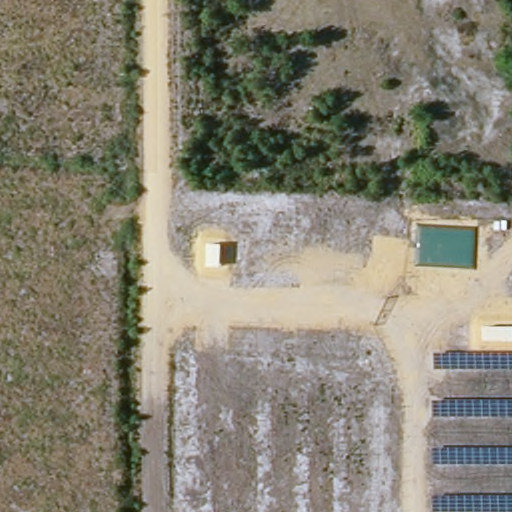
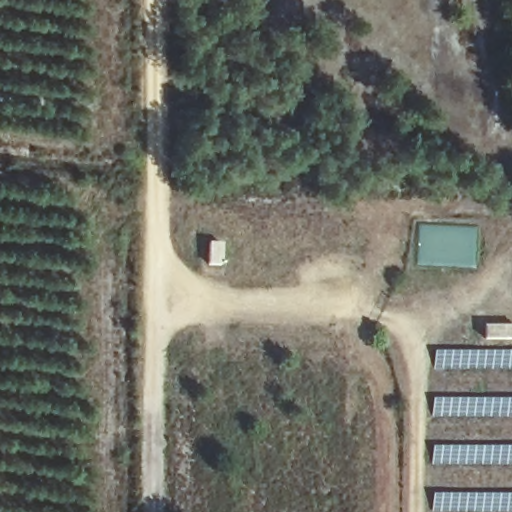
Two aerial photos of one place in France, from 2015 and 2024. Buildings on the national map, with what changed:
unchanged [(208,244),(220,244),(218,267),(207,267),(208,244)]
unchanged [(481,325),(512,325),(512,341),(482,340),(481,325)]

